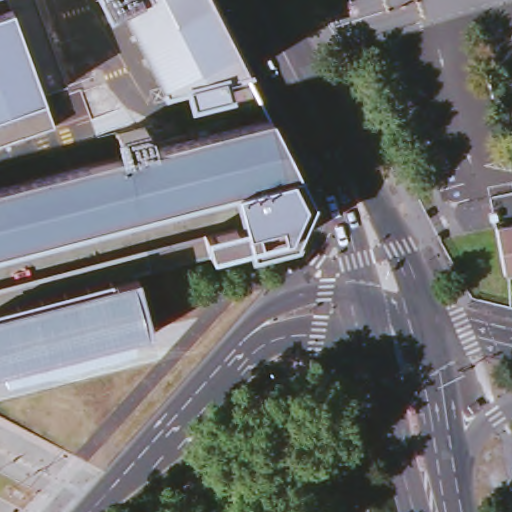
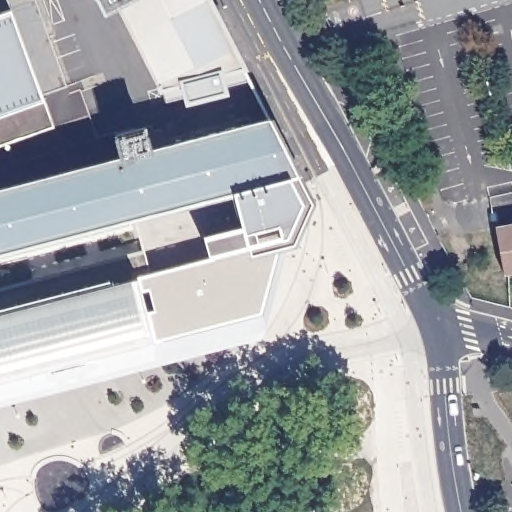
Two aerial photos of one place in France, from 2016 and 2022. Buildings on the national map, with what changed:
unchanged [(0,122),(0,0),(9,0),(50,105),(0,122)]
unchanged [(50,105),(9,0),(39,0),(74,97),(50,105)]
unchanged [(159,76),(121,0),(209,0),(244,70),(159,76)]
unchanged [(57,127),(0,145),(0,122),(50,105),(57,127)]
unchanged [(123,156),(116,133),(143,126),(150,149),(270,121),(309,197),(289,238),(254,247),(248,249),(246,239),(206,250),(201,232),(241,222),(231,187),(0,243),(0,186),(71,170),(123,156)]
unchanged [(506,273),(497,226),(512,223),(512,272),(506,273)]
new [(155,337),(153,327),(146,328),(131,275),(214,257),(213,247),(246,239),(248,249),(254,247),(279,241),(261,310),(155,337)]
unchanged [(146,328),(127,333),(129,343),(1,377),(0,372),(0,310),(131,275),(146,328)]

